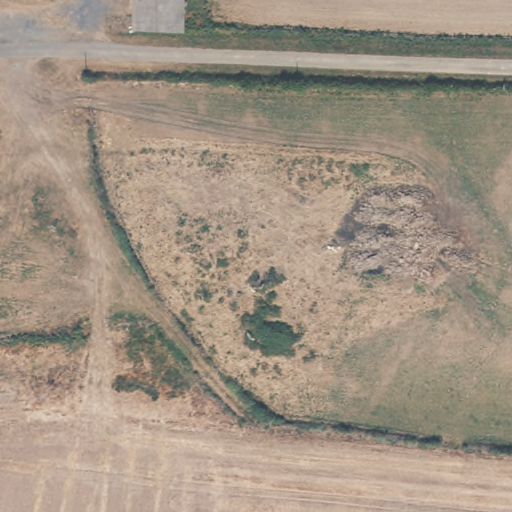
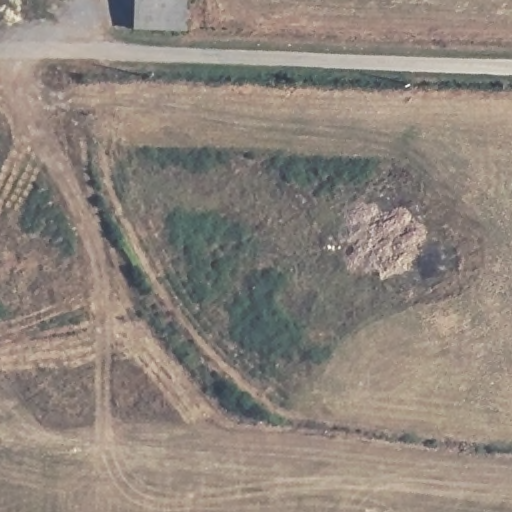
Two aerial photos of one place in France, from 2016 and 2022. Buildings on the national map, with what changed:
unchanged [(179,35),(131,35),(132,0),(181,0),(179,35)]

